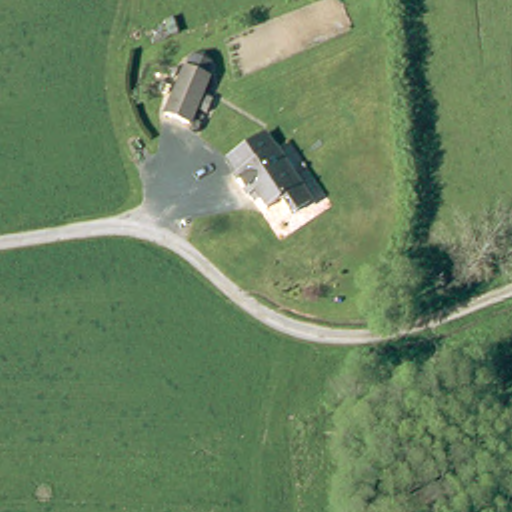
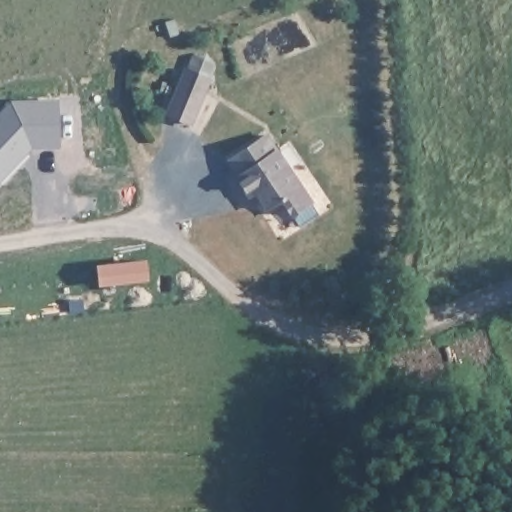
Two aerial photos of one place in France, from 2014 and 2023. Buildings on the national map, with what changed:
unchanged [(204,79),(184,123),(164,115),(185,69),(204,79)]
new [(10,100),(55,99),(57,144),(32,144),(0,178),(0,110),(10,100)]
unchanged [(292,212),(285,212),(280,201),(263,212),(252,193),(243,197),(230,176),(233,173),(232,172),(228,164),(227,155),(261,131),(307,201),(292,212)]

